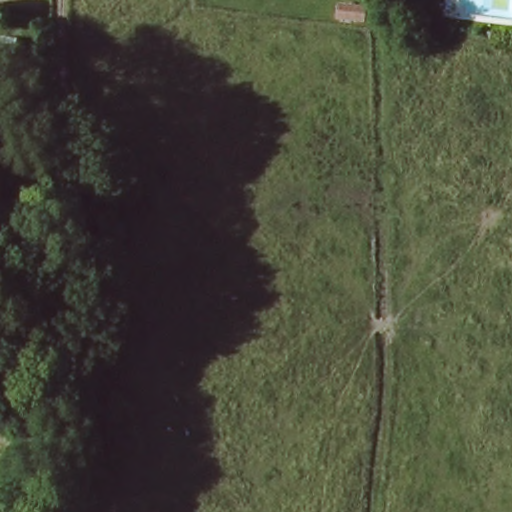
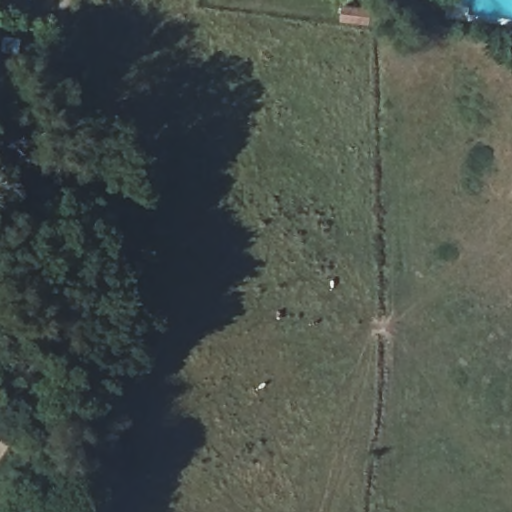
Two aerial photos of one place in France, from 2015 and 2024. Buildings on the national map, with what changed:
[]

